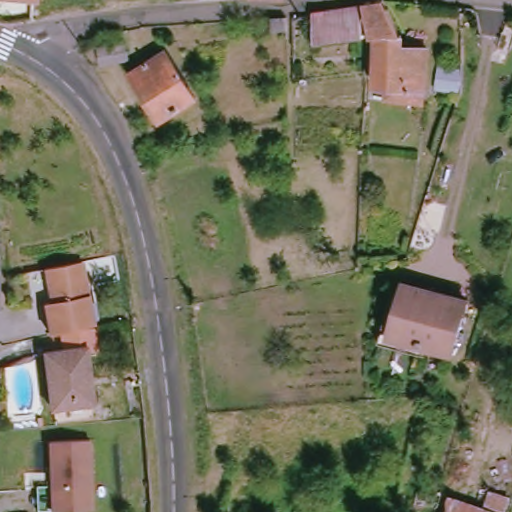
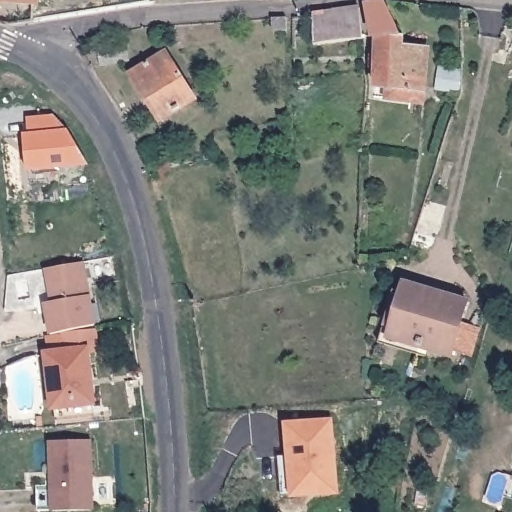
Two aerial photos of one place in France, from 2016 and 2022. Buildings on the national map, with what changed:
unchanged [(398,42),(426,47),(422,83),(420,99),(370,96),(370,31),(366,31),(363,1),(363,0),(384,0),(398,31),(398,42)]
unchanged [(355,4),(357,35),(310,43),(308,10),(355,4)]
unchanged [(285,19),(285,31),(270,31),(270,20),(285,19)]
unchanged [(125,44),(129,61),(102,65),(99,48),(125,44)]
unchanged [(188,98),(153,120),(122,73),(157,51),(188,98)]
new [(28,134),(27,116),(55,114),(68,129),(89,166),(27,172),(24,134),(28,134)]
unchanged [(47,334),(42,302),(48,301),(43,267),(81,260),(91,325),(97,355),(85,355),(85,348),(60,351),(57,332),(47,334)]
unchanged [(403,281),(464,308),(440,360),(380,333),(403,281)]
unchanged [(85,348),(91,405),(49,410),(42,353),(85,348)]
new [(290,498),(284,422),(334,418),(340,495),(290,498)]
unchanged [(92,438),(95,510),(50,510),(50,507),(35,508),(35,485),(49,485),(47,440),(92,438)]

